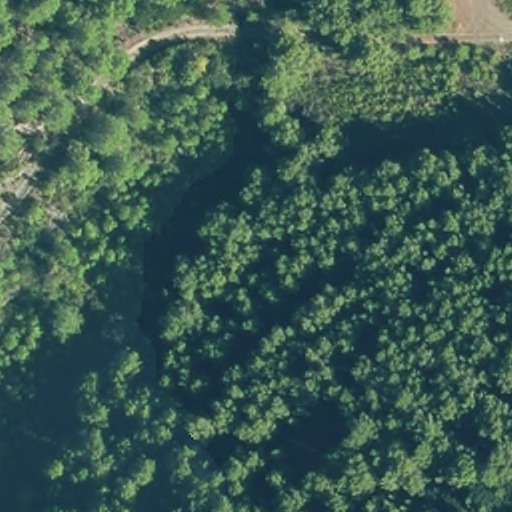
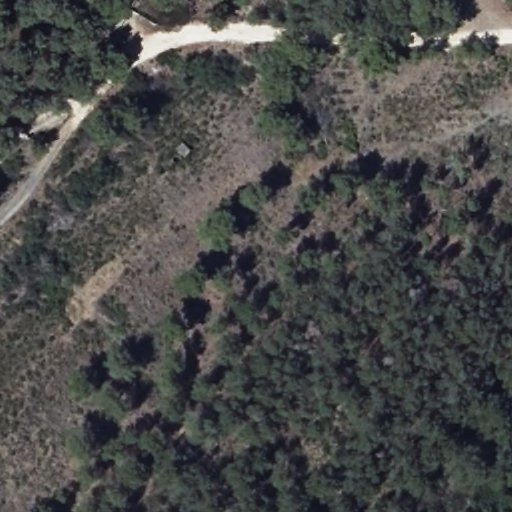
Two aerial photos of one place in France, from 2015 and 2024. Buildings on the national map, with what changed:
unchanged [(188,160),(180,168),(169,160),(178,150),(188,160)]

